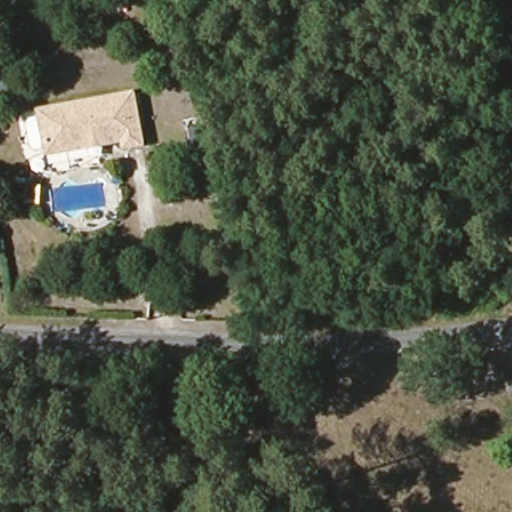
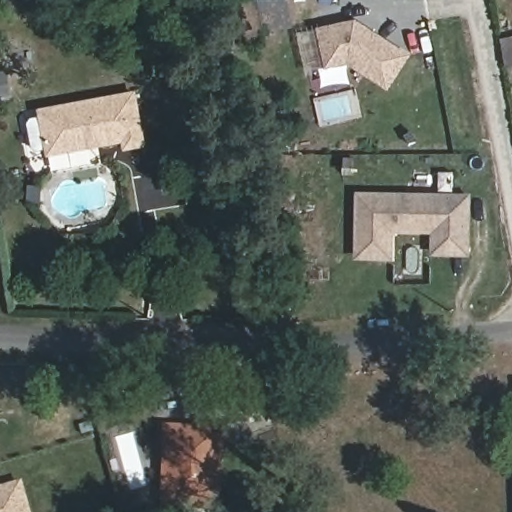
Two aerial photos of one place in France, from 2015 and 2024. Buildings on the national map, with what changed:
new [(370,30),(407,57),(387,87),(349,62),(327,67),(320,31),(359,23),(370,30)]
unchanged [(512,35),(512,38),(511,36),(512,35)]
new [(6,96),(0,97),(0,71),(1,71),(6,96)]
unchanged [(147,142),(128,146),(126,138),(48,151),(41,107),(139,92),(147,142)]
new [(391,231),(391,257),(358,257),(359,196),(459,197),(459,214),(468,214),(468,254),(446,253),(434,253),(434,231),(391,231)]
new [(170,431),(187,431),(215,432),(213,502),(168,501),(169,458),(170,431)]
new [(28,512),(0,512),(0,490),(20,485),(28,512)]

